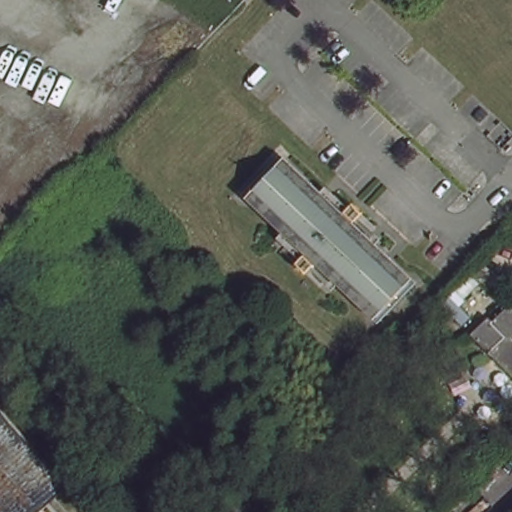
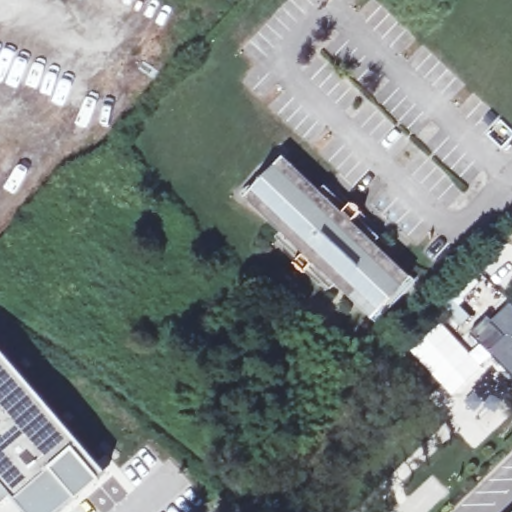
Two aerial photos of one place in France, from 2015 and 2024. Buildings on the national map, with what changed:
unchanged [(281,237),(292,227),(253,189),(286,155),(325,193),(336,182),(373,217),(362,229),(410,275),(380,309),(334,265),(321,279),(281,237)]
unchanged [(494,350),(475,333),(496,313),(499,316),(512,301),(512,332),(494,350)]
unchanged [(494,350),(512,332),(512,366),(494,350)]
new [(106,474),(61,512),(0,512),(0,352),(1,352),(106,474)]

